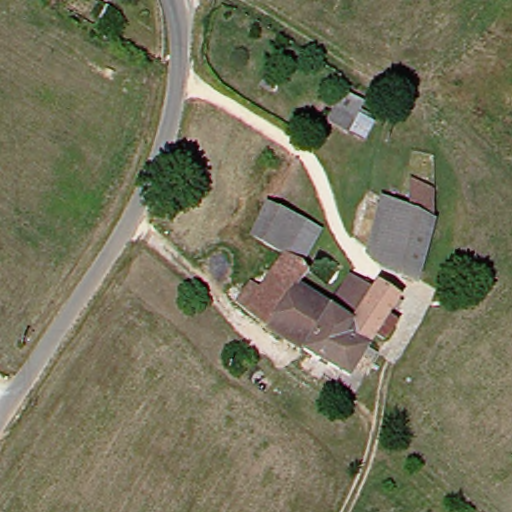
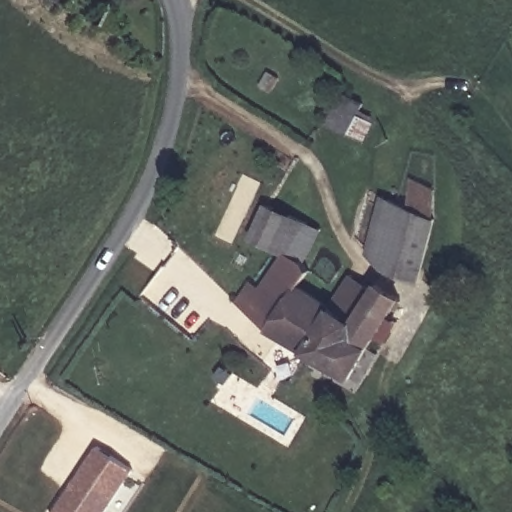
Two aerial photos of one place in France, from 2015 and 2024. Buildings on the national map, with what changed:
unchanged [(50,0),(53,0),(52,1),(50,0)]
unchanged [(371,139),(359,132),(358,134),(337,124),(353,93),(374,104),(368,115),(381,121),(371,139)]
unchanged [(383,268),(370,254),(386,195),(414,207),(414,178),(440,189),(439,219),(423,285),(383,268)]
unchanged [(289,253),(256,236),(270,204),(326,230),(308,262),(289,253)]
unchanged [(241,302),(254,282),(266,288),(289,253),(308,262),(314,271),(303,287),(334,308),(358,323),(351,335),(372,348),(354,377),(269,327),(241,302)]
unchanged [(446,293),(459,272),(467,263),(480,274),(460,302),(446,293)]
unchanged [(391,342),(381,336),(372,348),(351,335),(358,323),(334,308),(356,276),(376,289),(379,285),(404,300),(393,317),(403,323),(391,342)]
new [(105,512),(53,512),(98,445),(133,469),(105,512)]

